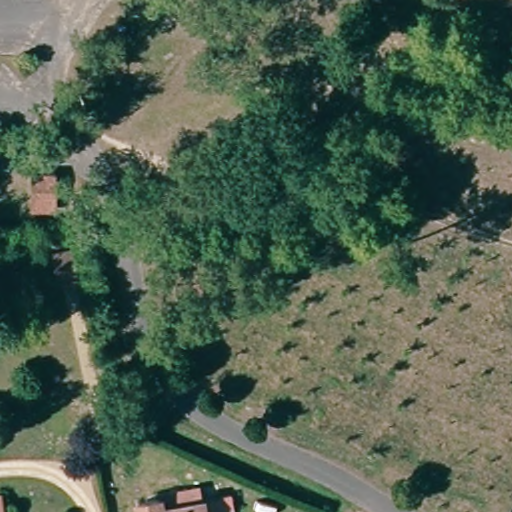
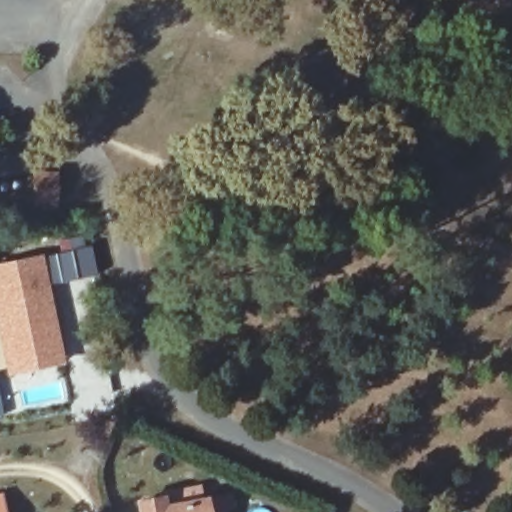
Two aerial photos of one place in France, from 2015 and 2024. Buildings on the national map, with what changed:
new [(32,212),(32,171),(58,171),(57,210),(32,212)]
demolished [(67,207),(54,208),(54,171),(68,172),(67,207)]
new [(6,376),(0,347),(0,263),(71,250),(76,279),(48,285),(64,363),(6,376)]
demolished [(90,280),(75,283),(69,255),(84,252),(90,280)]
new [(4,415),(0,416),(0,398),(4,415)]
unchanged [(205,512),(137,512),(135,499),(158,496),(160,507),(203,499),(205,512)]

